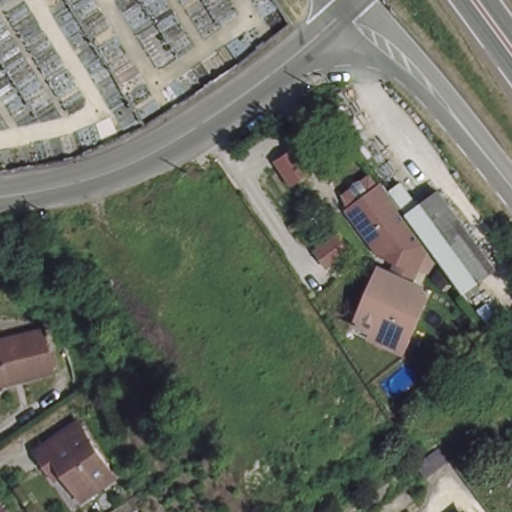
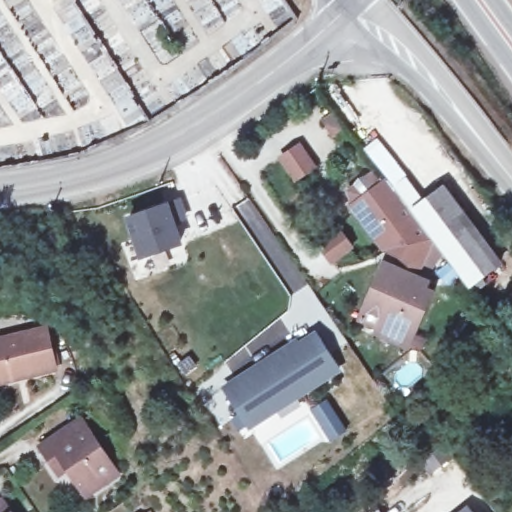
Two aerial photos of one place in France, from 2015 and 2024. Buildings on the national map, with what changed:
demolished [(236,137),(222,146),(212,130),(227,121),(236,137)]
new [(300,139),(315,161),(295,174),(280,152),(300,139)]
unchanged [(398,178),(412,197),(431,185),(489,262),(474,275),(479,281),(464,292),(422,235),(406,212),(387,186),(398,178)]
unchanged [(406,212),(422,235),(411,258),(379,251),(347,207),(383,181),(387,186),(406,212)]
new [(177,200),(184,217),(172,222),(180,243),(142,257),(128,219),(177,200)]
unchanged [(415,282),(414,293),(419,295),(401,350),(355,336),(377,271),(415,282)]
unchanged [(57,366),(0,379),(0,336),(49,326),(57,366)]
new [(243,380),(245,385),(252,380),(249,376),(296,344),(299,347),(315,336),(339,371),(302,397),(295,396),(274,410),(270,404),(262,410),(269,419),(252,431),(225,392),(243,380)]
new [(314,410),(327,400),(347,429),(332,438),(314,410)]
unchanged [(118,468),(87,492),(70,464),(61,471),(45,445),(82,420),(118,468)]
unchanged [(457,454),(435,471),(424,456),(445,440),(457,454)]
unchanged [(10,512),(0,512),(0,506),(4,503),(10,512)]

